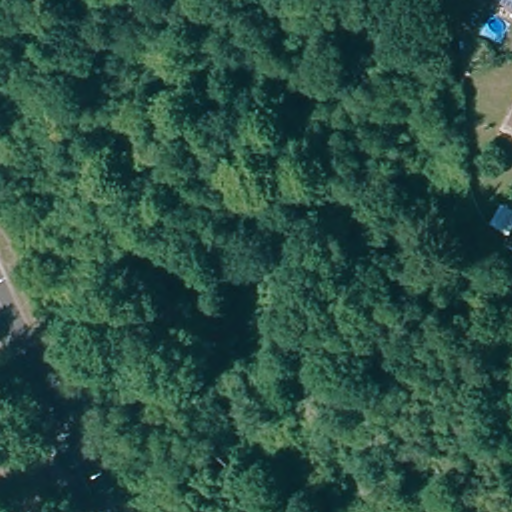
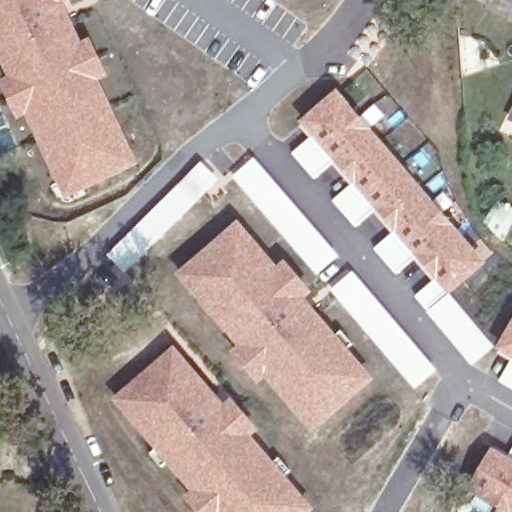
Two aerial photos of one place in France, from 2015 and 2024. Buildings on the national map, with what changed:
new [(63,180),(0,42),(0,0),(63,0),(130,148),(135,160),(121,166),(85,182),(67,191),(63,180)]
unchanged [(512,4),(505,0),(512,0),(512,4)]
new [(106,71),(97,75),(82,43),(91,39),(106,71)]
new [(29,106),(20,110),(5,78),(14,74),(29,106)]
new [(482,262),(427,309),(416,296),(438,277),(419,254),(396,273),(375,248),(398,229),(379,206),(356,225),(334,199),(357,180),(351,185),(332,163),(338,158),(315,177),(294,152),(317,133),(311,137),(301,125),(306,121),(339,94),(482,262)]
new [(233,177),(255,158),(339,256),(317,275),(233,177)]
new [(107,255),(202,162),(220,180),(125,273),(107,255)]
new [(398,229),(392,233),(373,211),(379,206),(398,229)]
new [(192,285),(181,272),(189,265),(225,235),(238,224),(245,231),(368,378),(319,419),(311,426),(288,399),(192,285)]
new [(438,277),(433,281),(413,258),(419,254),(438,277)]
new [(308,290),(300,296),(277,270),(285,263),(308,290)]
new [(331,290),(354,271),(437,370),(415,389),(331,290)]
new [(512,330),(512,355),(501,348),(512,330)]
new [(264,371),(257,377),(234,350),(242,344),(264,371)]
new [(117,396),(127,388),(163,357),(173,348),(183,360),(307,507),(302,512),(214,512),(126,408),(117,396)]
new [(512,361),(511,361),(497,353),(501,348),(512,355),(512,361)]
new [(512,360),(512,389),(499,381),(512,360)]
new [(253,427),(245,434),(223,407),(230,400),(253,427)]
new [(508,455),(505,460),(491,452),(495,447),(508,455)]
new [(491,452),(505,460),(512,449),(512,512),(509,512),(470,488),(491,452)]
new [(201,512),(187,496),(195,489),(214,512),(201,512)]

